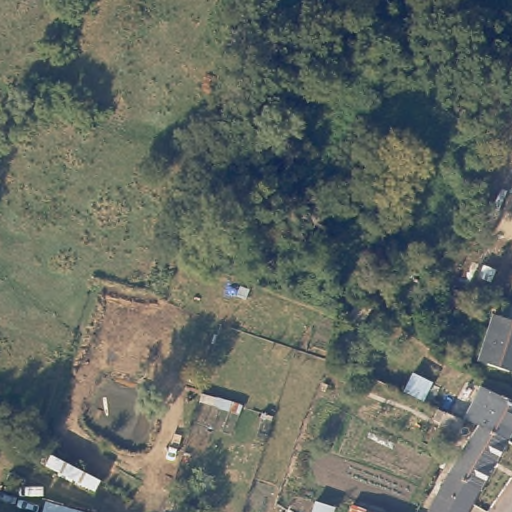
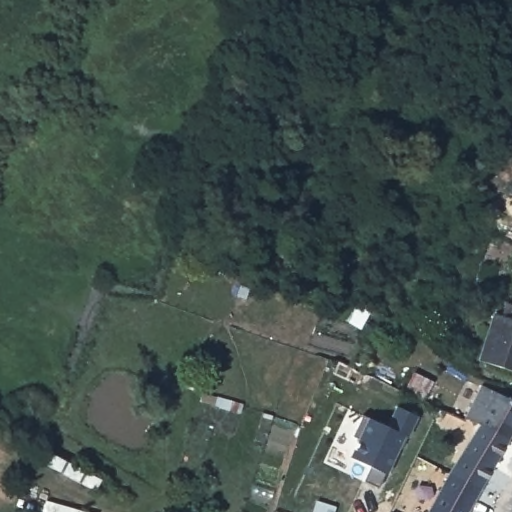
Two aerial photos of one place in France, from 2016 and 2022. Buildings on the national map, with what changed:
unchanged [(511,313),(512,311),(512,380),(480,362),(503,320),(506,321),(511,313)]
unchanged [(345,362),(354,367),(350,376),(337,371),(341,361),(345,362)]
unchanged [(468,421),(486,387),(512,399),(512,435),(511,437),(482,426),(468,421)]
new [(358,438),(352,435),(361,414),(386,425),(396,405),(417,415),(407,437),(404,436),(378,488),(362,480),(367,465),(348,456),(358,438)]
unchanged [(441,425),(447,411),(457,416),(468,421),(462,433),(441,425)]
unchanged [(432,512),(482,426),(511,437),(469,512),(432,512)]

